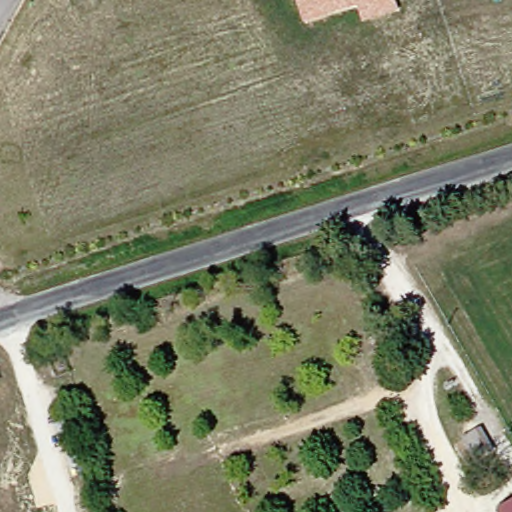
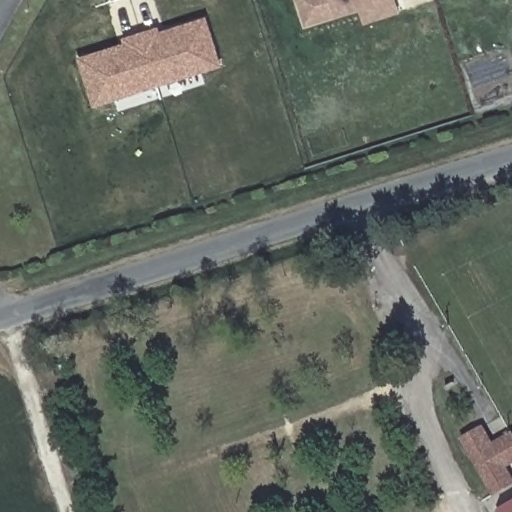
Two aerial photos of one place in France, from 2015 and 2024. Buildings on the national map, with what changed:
unchanged [(361,26),(356,11),(306,27),(297,0),(395,0),(400,14),(361,26)]
new [(222,64),(93,105),(78,54),(123,41),(122,35),(158,23),(160,27),(206,13),(222,64)]
new [(483,425),(493,443),(512,432),(512,466),(509,467),(512,473),(512,486),(494,495),(462,439),(483,425)]
demolished [(504,460),(492,466),(477,441),(489,433),(504,460)]

